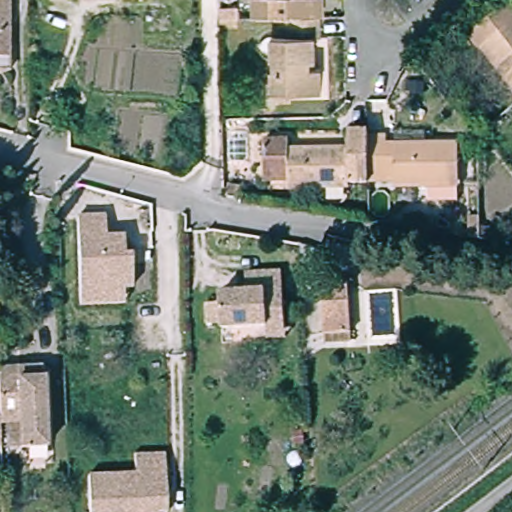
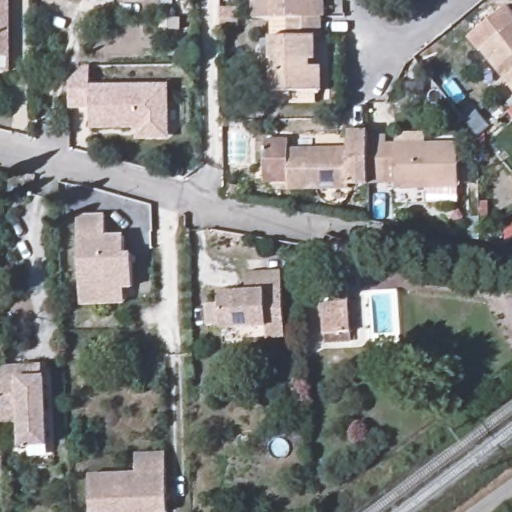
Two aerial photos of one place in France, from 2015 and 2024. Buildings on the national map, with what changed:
unchanged [(0,71),(0,0),(2,0),(1,56),(0,71)]
unchanged [(55,2),(54,0),(72,0),(72,2),(55,2)]
unchanged [(252,14),(252,0),(319,0),(319,12),(286,12),(252,14)]
unchanged [(235,9),(235,20),(235,28),(217,29),(217,20),(217,10),(235,9)]
unchanged [(319,30),(312,30),(313,54),(308,54),(308,63),(320,63),(320,85),(271,87),(269,31),(287,30),(286,12),(319,12),(319,30)]
unchanged [(479,49),(512,22),(512,88),(479,49)]
new [(91,85),(170,84),(171,140),(136,140),(136,129),(89,130),(90,108),(69,108),(69,81),(84,65),(90,65),(91,85)]
unchanged [(347,184),(347,189),(287,190),(287,181),(262,182),(260,141),(287,140),(287,150),(345,148),(345,131),(365,130),(365,137),(367,183),(347,184)]
unchanged [(385,137),(385,145),(455,144),(457,186),(455,186),(455,201),(425,201),(425,186),(392,187),(392,182),(367,183),(365,137),(385,137)]
unchanged [(226,184),(240,186),(238,199),(224,196),(226,184)]
unchanged [(125,290),(125,300),(82,304),(78,215),(105,215),(108,235),(123,235),(126,252),(132,252),(135,287),(125,290)]
unchanged [(271,337),(271,325),(225,328),(224,323),(210,325),(209,303),(223,302),(223,292),(250,290),(249,272),(285,270),(287,321),(288,336),(271,337)]
unchanged [(316,300),(328,300),(327,279),(342,278),(344,338),(317,339),(317,332),(316,300)]
unchanged [(40,367),(41,378),(46,448),(19,450),(17,425),(0,425),(0,368),(27,367),(40,367)]
unchanged [(91,473),(138,472),(138,452),(168,452),(168,512),(91,512),(91,473)]

